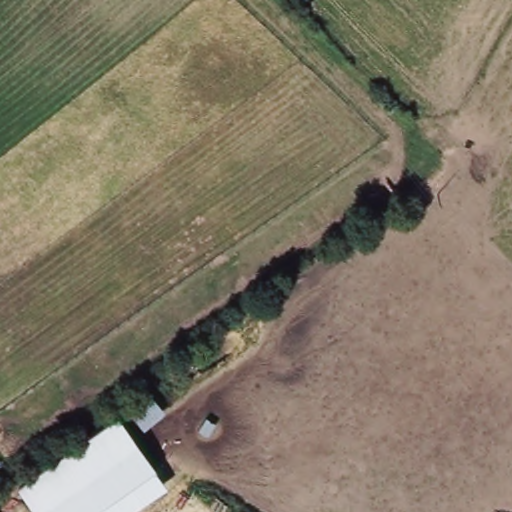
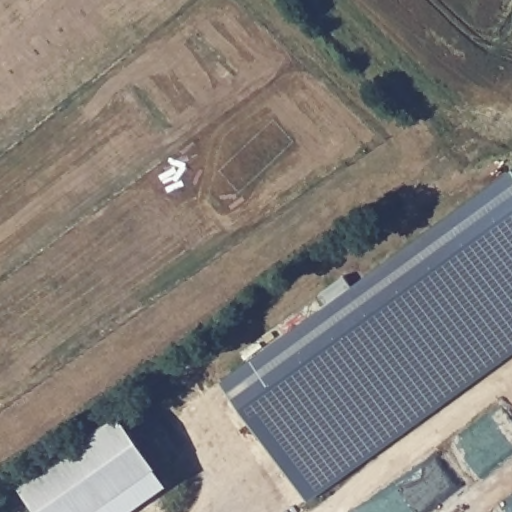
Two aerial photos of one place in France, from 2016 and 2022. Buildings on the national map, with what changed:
new [(220,380),(512,167),(512,352),(308,501),(220,380)]
unchanged [(155,470),(94,512),(28,512),(11,487),(116,415),(155,470)]

